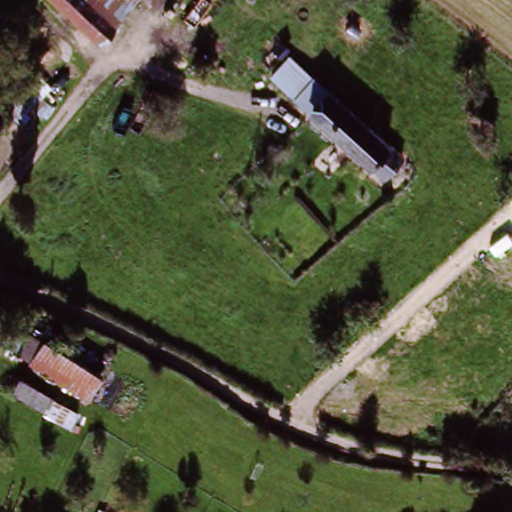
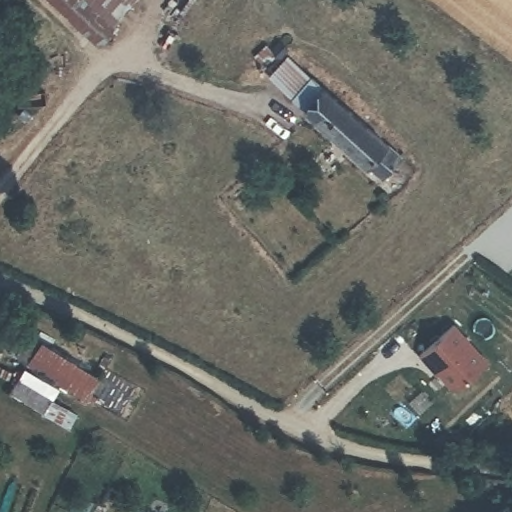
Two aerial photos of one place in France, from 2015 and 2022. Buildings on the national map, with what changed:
unchanged [(100,41),(57,0),(126,0),(133,6),(100,41)]
unchanged [(379,179),(288,100),(264,79),(282,59),(305,79),(397,159),(379,179)]
new [(486,359),(459,383),(452,382),(434,362),(433,364),(419,350),(452,321),(486,359)]
unchanged [(103,377),(89,400),(34,364),(49,342),(103,377)]

